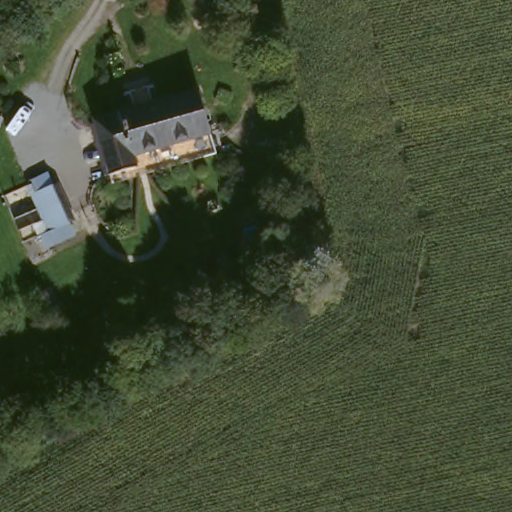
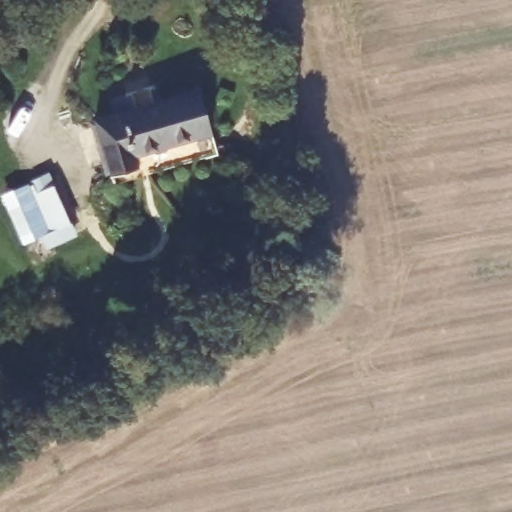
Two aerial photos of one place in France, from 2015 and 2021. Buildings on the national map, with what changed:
unchanged [(204,137),(131,158),(134,170),(106,179),(89,124),(192,94),(204,137)]
unchanged [(48,232),(33,197),(51,189),(66,224),(48,232)]

